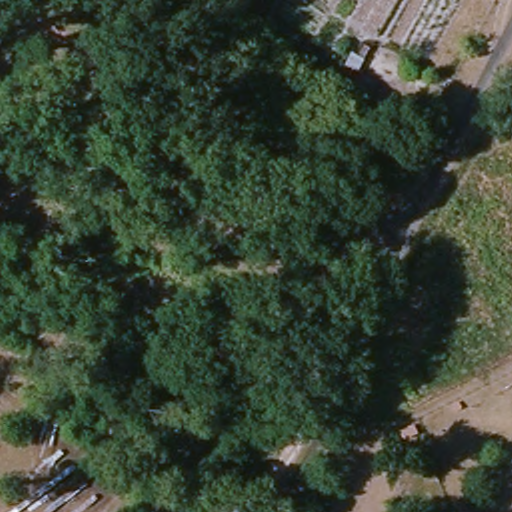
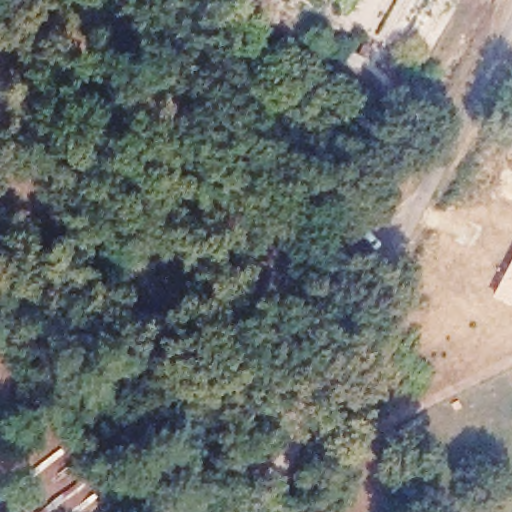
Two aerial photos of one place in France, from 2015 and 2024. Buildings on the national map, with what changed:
new [(512,257),(512,305),(492,295),(512,257)]

